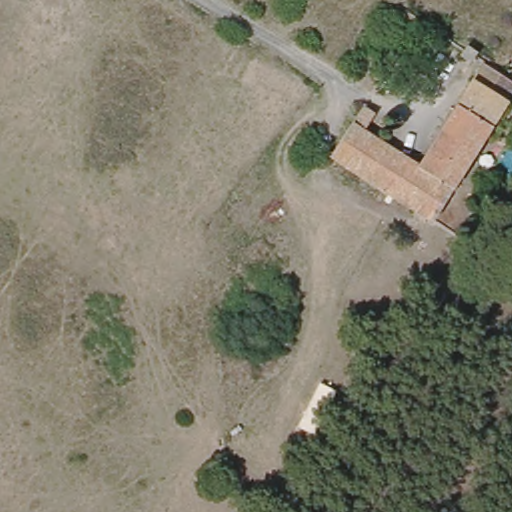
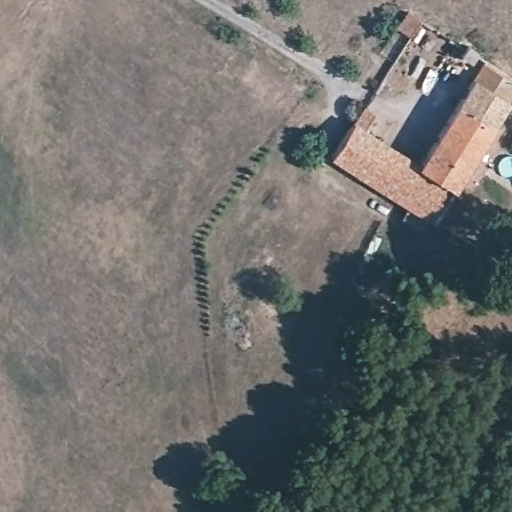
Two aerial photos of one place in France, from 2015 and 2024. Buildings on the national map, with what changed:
unchanged [(398,26),(407,12),(420,21),(411,34),(398,26)]
unchanged [(472,62),(461,54),(464,50),(468,45),(478,51),(475,56),(472,62)]
unchanged [(366,128),(421,162),(484,62),(512,81),(512,96),(433,220),(332,157),(365,105),(376,113),(366,128)]
unchanged [(318,382),(337,391),(316,434),(297,426),(318,382)]

